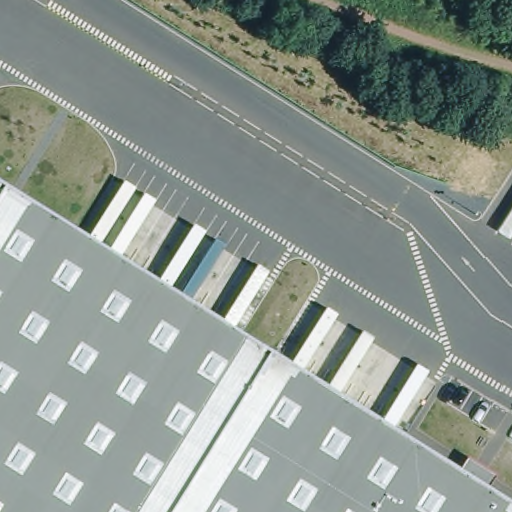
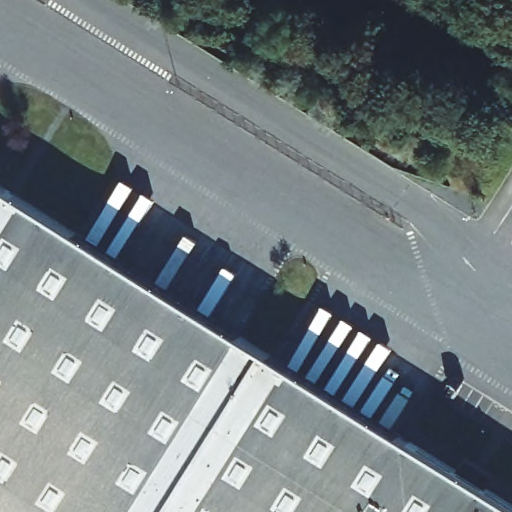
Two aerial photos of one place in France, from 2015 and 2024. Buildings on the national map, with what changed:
unchanged [(512,506),(512,512),(0,512),(0,186),(512,506)]

